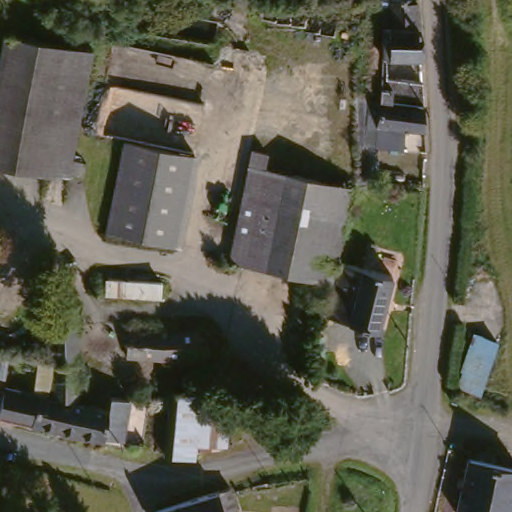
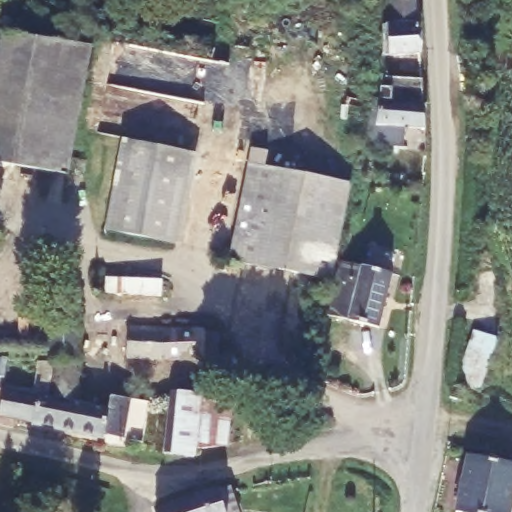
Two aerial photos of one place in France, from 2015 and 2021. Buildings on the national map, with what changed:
unchanged [(419,17),(421,39),(381,35),(381,6),(418,7),(419,17)]
unchanged [(421,63),(379,61),(381,35),(421,39),(421,63)]
unchanged [(56,177),(0,164),(0,63),(6,38),(87,55),(56,177)]
unchanged [(373,112),(373,86),(418,87),(418,112),(373,112)]
unchanged [(418,112),(418,139),(396,138),(395,159),(371,157),(373,112),(418,112)]
unchanged [(107,235),(126,147),(194,162),(176,249),(107,235)]
unchanged [(226,267),(246,173),(347,191),(333,254),(326,283),(311,281),(226,267)]
unchanged [(347,271),(391,287),(371,337),(324,317),(342,268),(347,271)]
unchanged [(167,282),(166,303),(104,301),(106,280),(167,282)]
unchanged [(76,365),(49,364),(55,308),(84,311),(76,365)]
unchanged [(459,398),(474,332),(499,337),(483,403),(459,398)]
unchanged [(124,337),(163,337),(161,368),(139,368),(123,367),(124,337)]
unchanged [(199,371),(161,368),(163,337),(194,338),(201,338),(199,371)]
unchanged [(76,365),(70,408),(53,404),(45,402),(49,364),(76,365)]
unchanged [(48,433),(0,423),(0,392),(45,402),(53,404),(48,433)]
unchanged [(123,402),(114,448),(91,443),(96,414),(98,398),(123,402)]
unchanged [(163,470),(173,401),(198,403),(193,458),(192,474),(163,470)]
unchanged [(228,406),(224,461),(193,458),(198,403),(228,406)]
unchanged [(48,433),(53,404),(70,408),(96,414),(91,443),(48,433)]
unchanged [(454,512),(466,463),(512,474),(512,485),(505,512),(454,512)]
unchanged [(246,488),(250,512),(206,512),(203,497),(246,488)]
unchanged [(206,512),(151,512),(148,505),(203,497),(206,512)]

